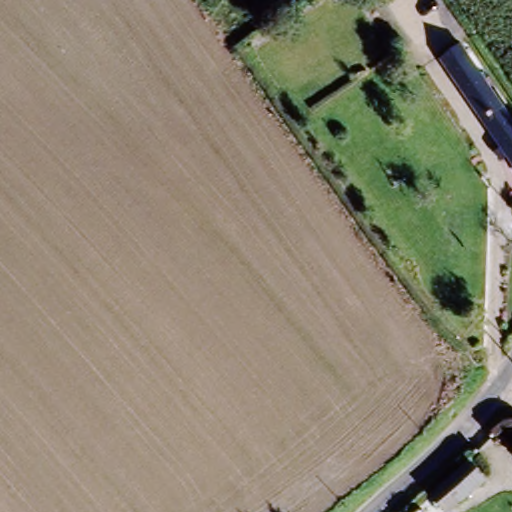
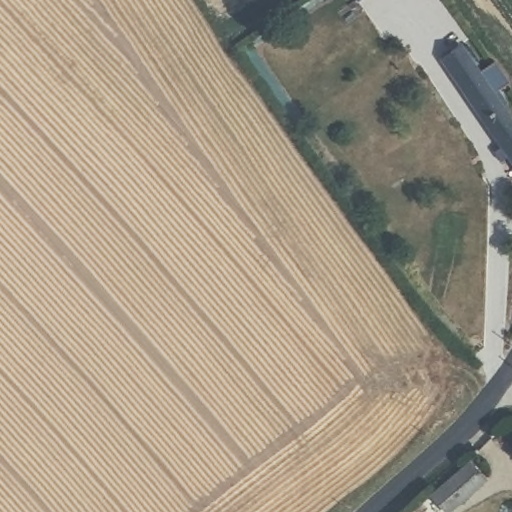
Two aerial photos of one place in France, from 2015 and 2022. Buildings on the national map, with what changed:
unchanged [(437,57),(457,43),(495,97),(503,109),(481,123),(437,57)]
unchanged [(503,109),(512,121),(512,165),(481,123),(503,109)]
unchanged [(460,466),(475,481),(443,512),(431,512),(421,504),(460,466)]

